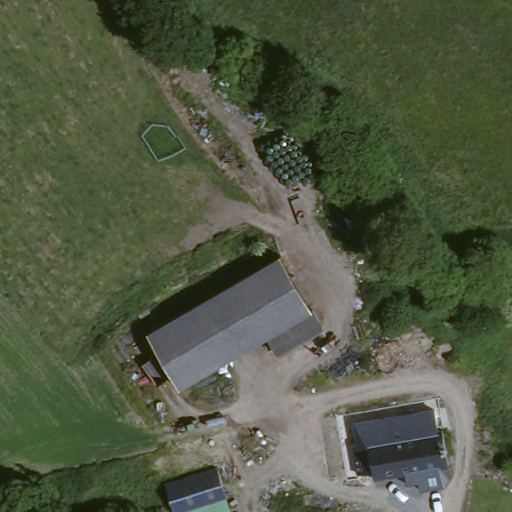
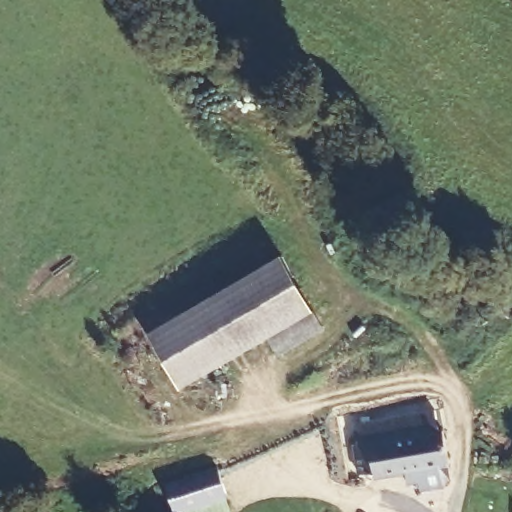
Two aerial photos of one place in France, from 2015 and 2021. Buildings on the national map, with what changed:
unchanged [(177,391),(147,336),(280,265),(310,320),(177,391)]
unchanged [(440,474),(440,476),(442,487),(437,495),(428,496),(414,499),(410,479),(410,478),(370,485),(368,480),(367,481),(357,430),(436,419),(442,473),(440,474)]
unchanged [(180,477),(192,474),(220,468),(229,496),(177,512),(175,512),(165,481),(180,477)]
unchanged [(229,496),(234,512),(177,512),(229,496)]

